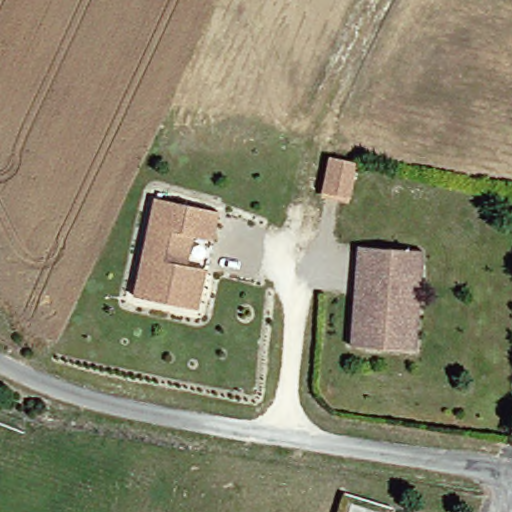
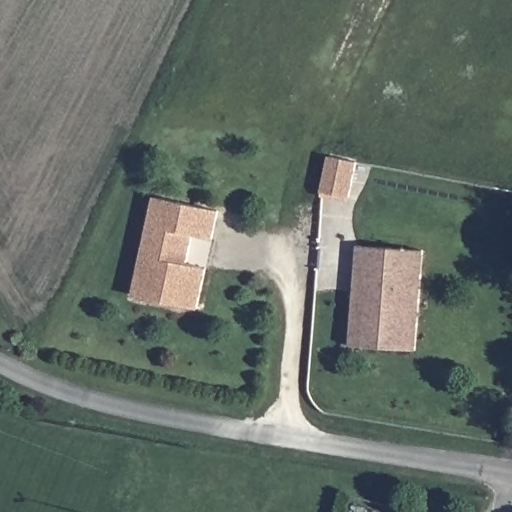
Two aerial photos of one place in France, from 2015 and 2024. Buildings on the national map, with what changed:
unchanged [(352,167),(345,202),(317,196),(326,161),(352,167)]
unchanged [(140,262),(154,202),(217,217),(211,246),(192,242),(185,271),(204,275),(195,315),(146,305),(132,301),(140,262)]
unchanged [(343,323),(352,323),(356,296),(347,295),(347,274),(355,274),(357,253),(396,258),(396,251),(418,253),(416,278),(408,345),(365,340),(364,349),(342,347),(343,323)]

